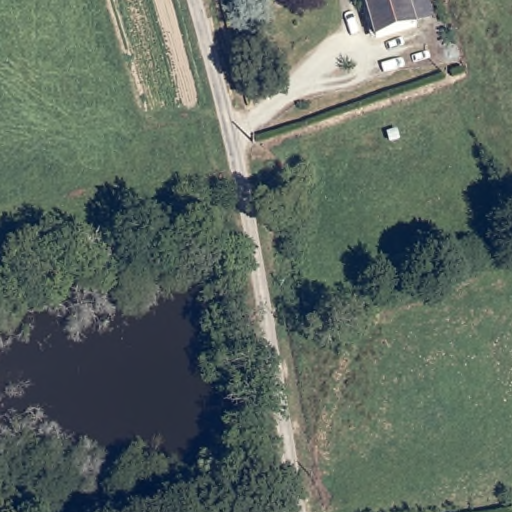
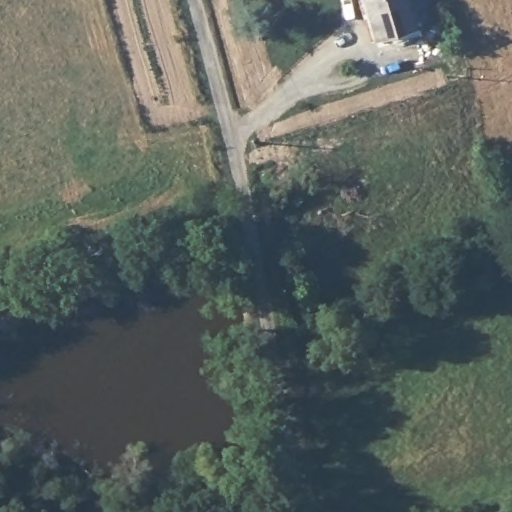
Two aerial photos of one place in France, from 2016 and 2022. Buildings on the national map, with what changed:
unchanged [(418,25),(378,40),(363,0),(408,0),(418,25)]

